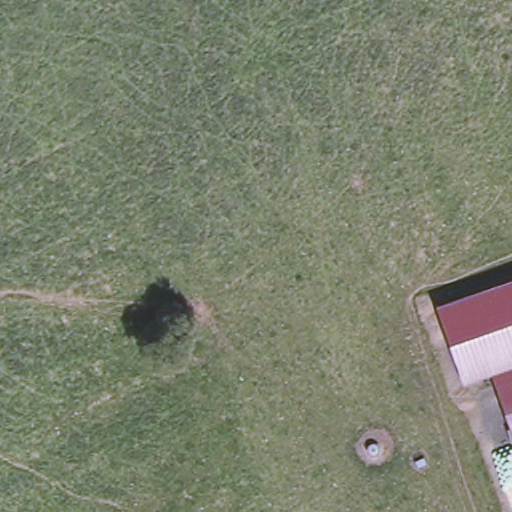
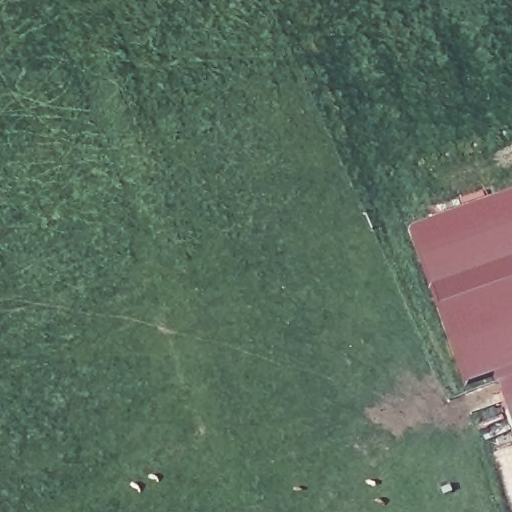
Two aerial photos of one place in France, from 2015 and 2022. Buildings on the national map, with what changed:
new [(437,306),(409,228),(512,192),(512,279),(437,306)]
unchanged [(493,375),(464,384),(437,306),(512,279),(512,431),(493,375)]

